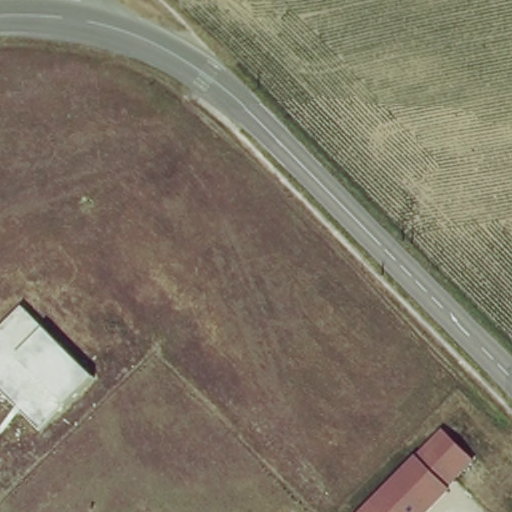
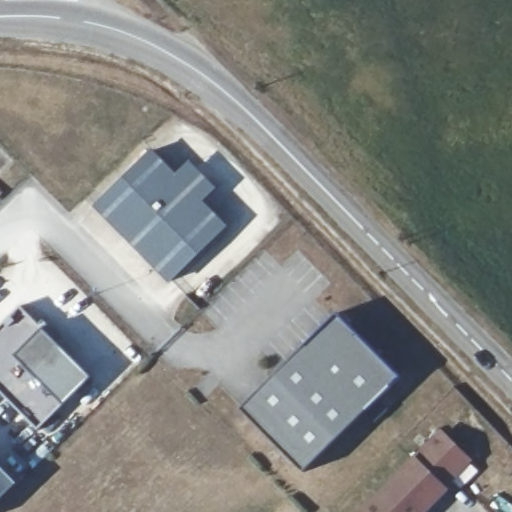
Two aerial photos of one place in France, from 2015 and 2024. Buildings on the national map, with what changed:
new [(182,176),(195,164),(220,190),(207,202),(231,228),(175,282),(101,205),(157,151),(182,176)]
unchanged [(0,327),(22,305),(92,377),(40,430),(0,391),(0,327)]
new [(313,338),(340,311),(403,374),(307,471),(243,408),(307,345),(313,338)]
unchanged [(477,462),(427,512),(360,512),(442,428),(477,462)]
new [(0,501),(0,463),(19,482),(0,501)]

